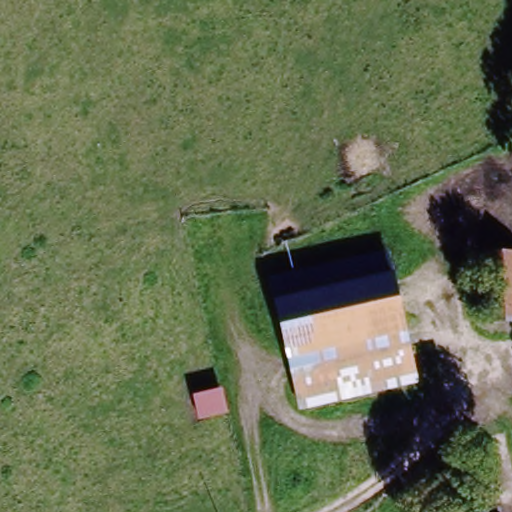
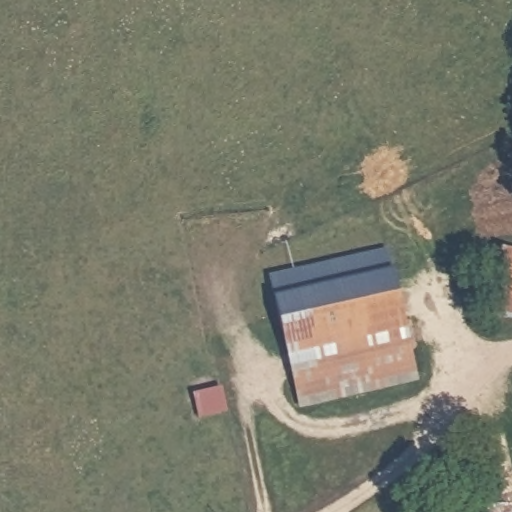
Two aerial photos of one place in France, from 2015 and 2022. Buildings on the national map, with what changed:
unchanged [(263,285),(382,257),(397,324),(278,352),(263,285)]
unchanged [(512,258),(512,321),(483,322),(478,258),(510,258),(512,258)]
unchanged [(397,324),(410,381),(291,409),(278,352),(397,324)]

